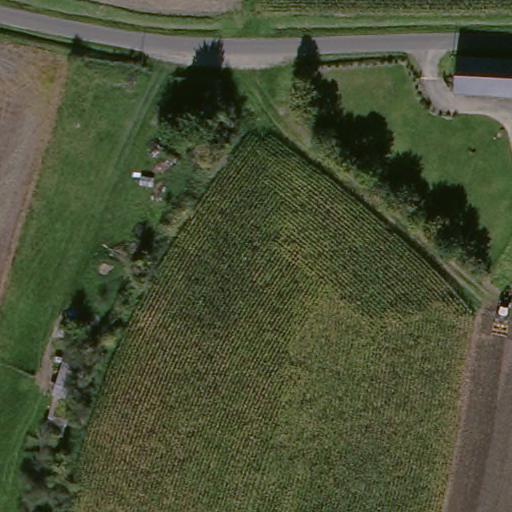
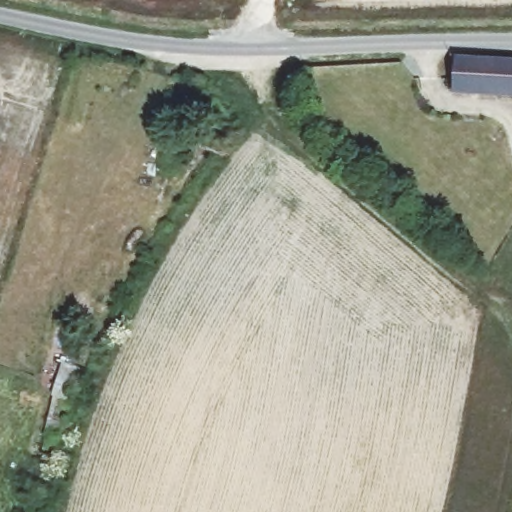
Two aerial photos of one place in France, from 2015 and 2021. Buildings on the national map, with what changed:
unchanged [(439,73),(512,72),(512,108),(440,106),(439,73)]

